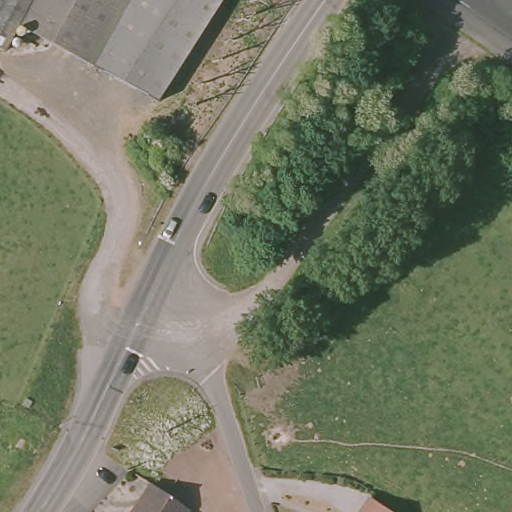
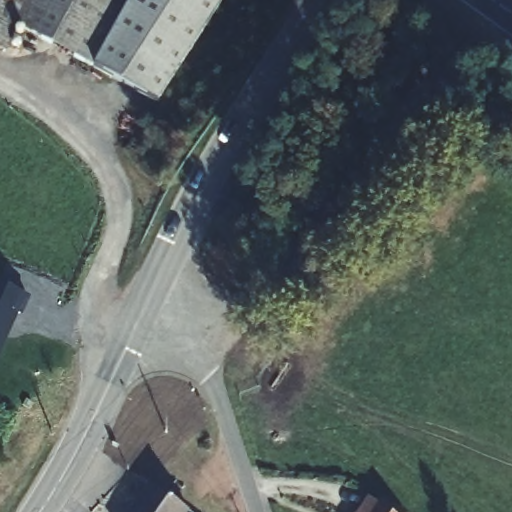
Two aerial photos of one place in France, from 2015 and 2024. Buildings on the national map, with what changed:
unchanged [(12,26),(0,46),(0,0),(25,0),(12,26)]
unchanged [(160,101),(12,26),(25,0),(228,0),(160,101)]
new [(15,314),(0,349),(0,283),(29,297),(20,316),(15,314)]
unchanged [(169,512),(114,512),(137,477),(175,503),(169,512)]
unchanged [(388,512),(361,512),(372,500),(388,512)]

